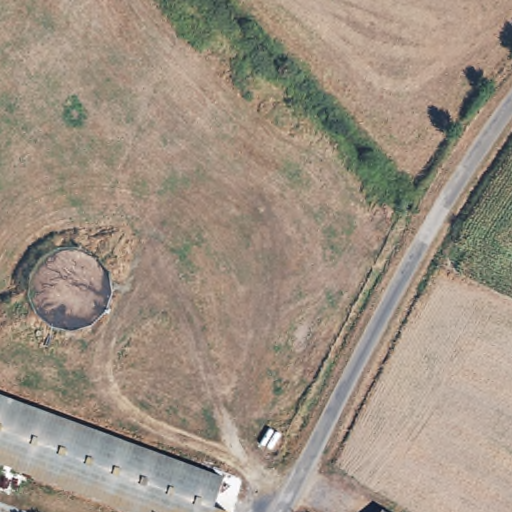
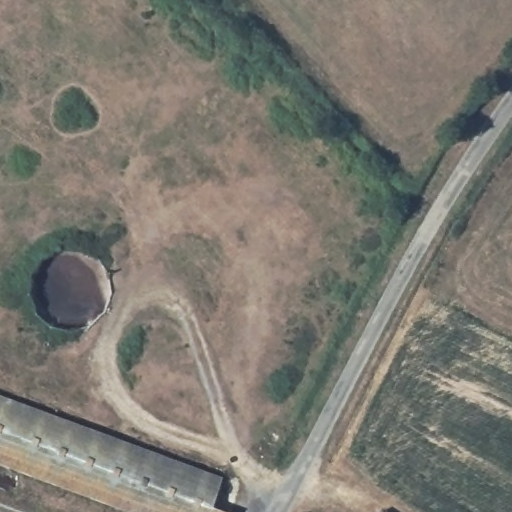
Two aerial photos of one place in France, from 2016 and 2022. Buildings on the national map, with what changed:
unchanged [(224,483),(214,509),(220,512),(130,512),(0,463),(0,399),(224,483)]

